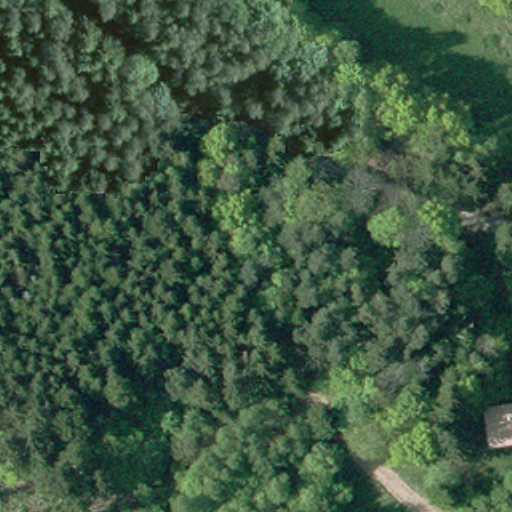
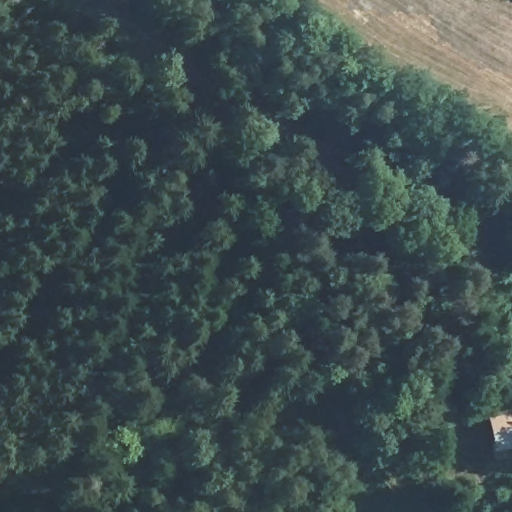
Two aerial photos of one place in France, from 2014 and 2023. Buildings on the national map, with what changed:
unchanged [(512,441),(493,441),(493,413),(512,413),(512,441)]

